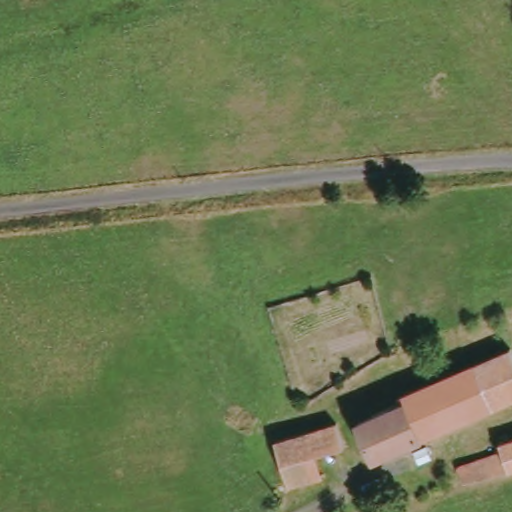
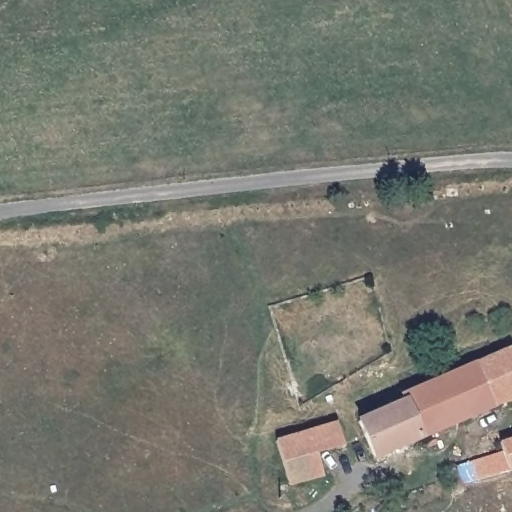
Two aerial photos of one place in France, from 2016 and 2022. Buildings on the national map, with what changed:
unchanged [(512,353),(512,401),(493,410),(473,367),(510,350),(512,353)]
unchanged [(477,375),(493,410),(425,439),(404,396),(473,367),(477,375)]
unchanged [(420,441),(371,468),(354,423),(403,402),(420,441)]
unchanged [(335,454),(321,462),(322,476),(295,488),(281,444),(333,425),(335,454)]
unchanged [(470,483),(470,465),(505,450),(504,440),(512,437),(512,470),(470,483)]

